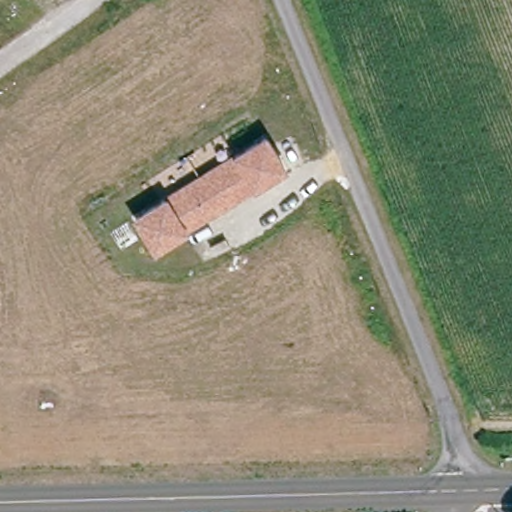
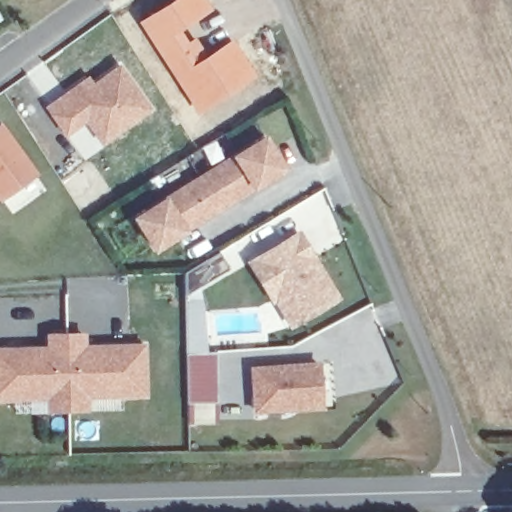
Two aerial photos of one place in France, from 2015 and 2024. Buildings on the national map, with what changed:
new [(171,0),(207,0),(214,10),(183,30),(189,39),(195,35),(207,54),(232,37),(258,76),(198,115),(137,21),(171,0)]
new [(94,82),(120,64),(151,109),(103,145),(86,123),(65,137),(44,107),(89,75),(94,82)]
new [(0,202),(0,124),(3,122),(39,174),(0,202)]
unchanged [(168,196),(232,155),(267,134),(289,169),(253,190),(189,230),(154,253),(133,216),(168,196)]
new [(341,297),(290,330),(246,261),(300,229),(341,297)]
new [(46,334),(86,333),(86,345),(148,343),(149,396),(90,398),(90,412),(49,413),(49,398),(0,401),(0,348),(46,346),(46,334)]
new [(215,352),(218,424),(189,425),(188,355),(215,352)]
new [(322,362),(326,408),(253,413),(250,368),(322,362)]

